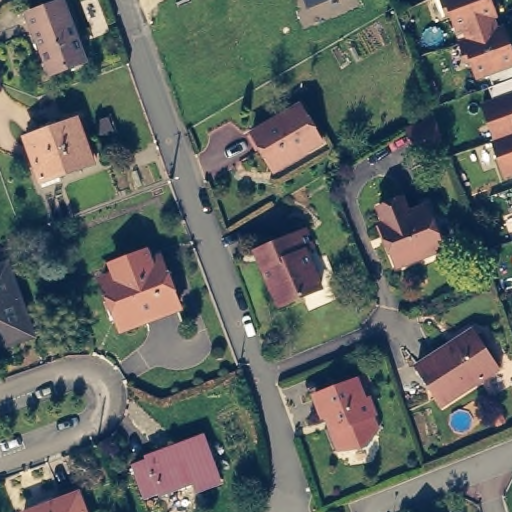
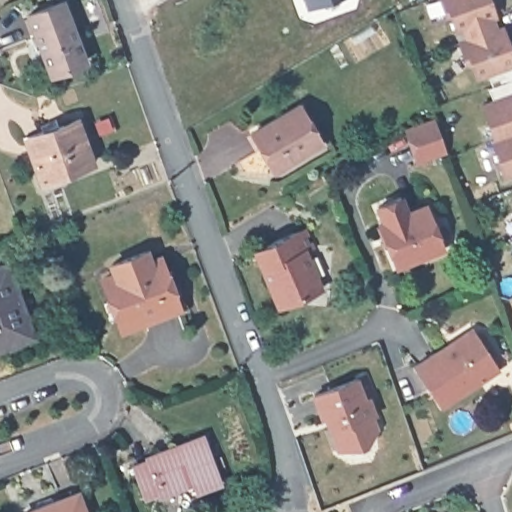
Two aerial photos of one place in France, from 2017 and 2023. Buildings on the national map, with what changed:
unchanged [(65,0),(86,57),(52,70),(30,9),(56,0),(65,0)]
unchanged [(303,0),(331,0),(306,9),(303,0)]
unchanged [(501,152),(488,117),(500,113),(495,100),(500,98),(495,85),(483,89),(476,72),(471,73),(464,54),(473,51),(468,38),(460,41),(455,24),(450,25),(443,6),(458,1),(458,0),(491,0),(501,27),(496,28),(501,41),(509,39),(512,46),(512,186),(499,152),(501,152)]
unchanged [(275,160),(258,127),(308,101),(328,139),(295,157),(278,166),(275,160)]
unchanged [(73,113),(87,155),(35,172),(21,130),(73,113)]
new [(432,122),(442,151),(415,160),(406,132),(432,122)]
unchanged [(445,240),(402,256),(392,232),(385,213),(390,211),(385,196),(407,187),(413,202),(433,196),(441,216),(450,239),(445,240)]
unchanged [(310,244),(302,247),(318,286),(276,302),(255,256),(250,246),(262,241),(300,226),(310,244)]
unchanged [(117,277),(113,265),(150,251),(152,257),(147,258),(150,266),(161,262),(182,311),(124,332),(103,282),(117,277)]
unchanged [(26,336),(0,344),(0,264),(8,262),(20,297),(33,333),(26,336)]
unchanged [(450,342),(451,343),(473,330),(500,368),(442,402),(415,362),(450,342)]
unchanged [(307,388),(358,372),(367,394),(363,395),(368,409),(366,411),(372,427),(367,432),(360,441),(333,445),(325,422),(326,421),(321,409),(315,411),(307,388)]
unchanged [(155,450),(154,447),(209,427),(227,472),(206,480),(202,472),(169,483),(167,481),(152,486),(140,455),(155,450)]
unchanged [(77,492),(86,512),(23,512),(77,492)]

